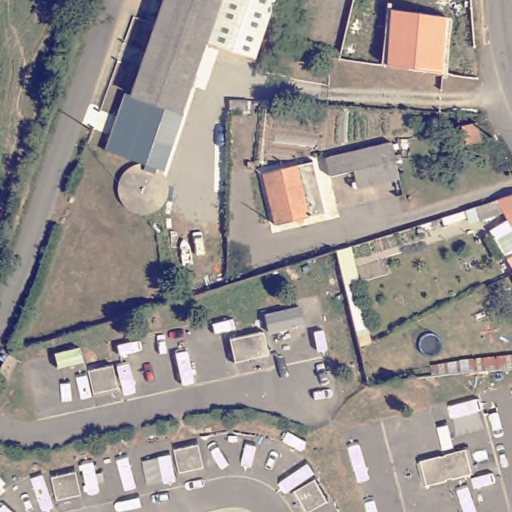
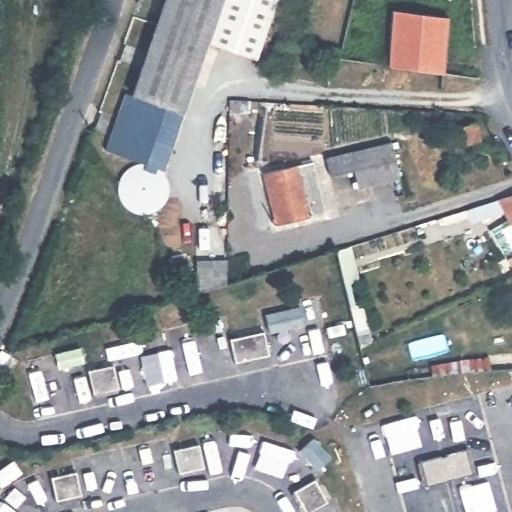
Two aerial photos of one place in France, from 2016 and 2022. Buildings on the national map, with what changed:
unchanged [(207,41),(180,118),(182,119),(164,171),(157,169),(155,174),(144,170),(146,165),(107,151),(126,98),(132,100),(168,0),(277,0),(256,59),(207,41)]
unchanged [(442,71),(387,64),(392,10),(448,17),(442,71)]
unchanged [(482,139),(466,144),(461,125),(477,121),(482,139)]
unchanged [(405,178),(365,188),(361,171),(336,176),(332,158),(397,144),(405,178)]
unchanged [(332,218),(282,230),(270,178),(319,167),(332,218)]
unchanged [(510,215),(492,221),(484,223),(481,212),(512,203),(512,220),(510,215)]
unchanged [(262,335),(266,352),(258,354),(260,360),(241,364),(240,358),(232,360),(228,342),(262,335)]
unchanged [(115,363),(118,379),(112,381),(114,388),(101,391),(100,384),(94,385),(93,385),(92,382),(89,369),(115,363)]
unchanged [(201,444),(204,460),(197,461),(198,469),(187,471),(185,463),(179,465),(175,449),(201,444)]
unchanged [(445,476),(446,481),(433,484),(432,478),(425,480),(421,468),(429,466),(427,460),(440,456),(442,461),(446,460),(445,455),(457,452),(459,458),(467,456),(470,468),(462,471),(463,476),(451,480),(450,475),(445,476)]
unchanged [(76,471),(80,487),(74,489),(75,497),(64,499),(62,491),(56,493),(52,477),(76,471)]
unchanged [(315,480),(327,502),(313,509),(310,504),(302,508),(297,497),(303,493),(301,488),(315,480)]

